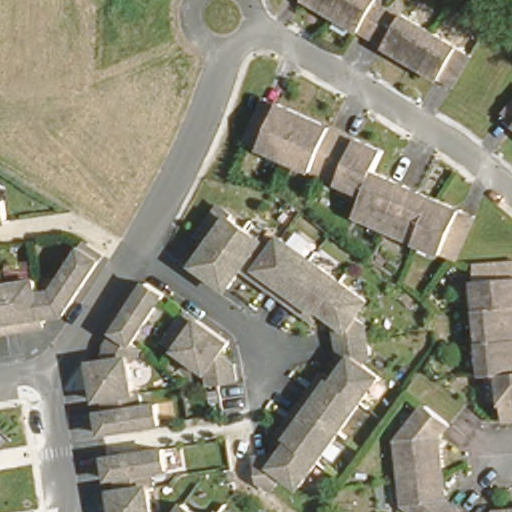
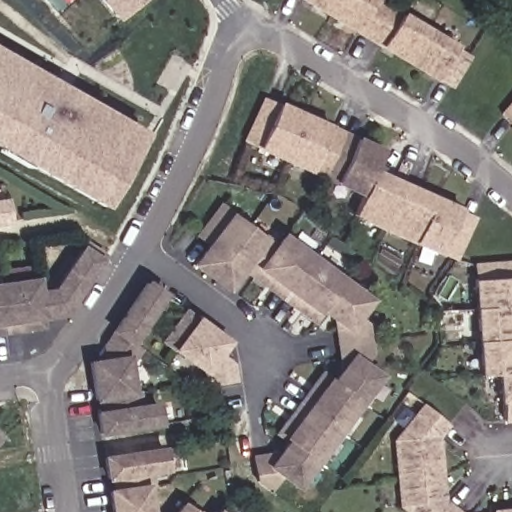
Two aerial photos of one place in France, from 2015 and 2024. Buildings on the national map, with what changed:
new [(111,0),(149,0),(127,19),(111,0)]
unchanged [(329,0),(324,9),(309,0),(329,0)]
unchanged [(384,0),(369,25),(349,13),(344,21),(324,9),(329,0),(384,0)]
unchanged [(402,58),(375,41),(381,31),(369,25),(384,0),(389,0),(425,21),(402,58)]
unchanged [(465,46),(447,76),(433,67),(429,74),(402,58),(425,21),(465,46)]
new [(8,148),(0,143),(0,48),(49,76),(76,91),(134,124),(151,134),(146,142),(115,197),(110,206),(93,196),(36,163),(8,148)]
unchanged [(507,93),(512,87),(512,98),(507,93)]
unchanged [(267,133),(270,126),(249,116),(260,95),(279,104),(284,92),(304,103),(321,111),(316,122),(337,131),(325,158),(309,150),(305,159),(282,148),(264,138),(267,133)]
unchanged [(337,131),(360,144),(364,134),(383,144),(375,161),(362,189),(337,176),(341,166),(325,158),(337,131)]
unchanged [(382,224),(352,209),(359,196),(362,189),(375,161),(406,179),(434,192),(452,202),(448,212),(469,222),(455,251),(437,240),(433,245),(431,248),(410,238),(382,224)]
unchanged [(0,199),(10,198),(14,225),(0,226),(0,199)]
unchanged [(282,480),(273,496),(253,482),(249,455),(276,451),(281,440),(274,435),(321,370),(333,381),(339,373),(332,322),(325,316),(317,328),(244,274),(231,294),(190,267),(203,248),(195,239),(219,206),(232,216),(275,246),(283,234),(375,302),(362,320),(371,324),(375,360),(369,365),(387,378),(299,492),(282,480)]
unchanged [(44,291),(56,290),(84,242),(106,257),(69,319),(44,322),(45,331),(0,336),(0,283),(41,278),(44,291)]
unchanged [(478,338),(478,305),(477,279),(487,279),(486,260),(512,259),(512,336),(478,338)]
unchanged [(141,340),(143,354),(134,356),(143,403),(162,400),(166,429),(101,437),(91,359),(101,358),(101,344),(110,331),(148,281),(171,297),(141,340)]
unchanged [(206,390),(204,373),(161,343),(188,309),(201,319),(236,344),(240,383),(206,390)]
unchanged [(498,372),(480,373),(478,338),(512,336),(512,371),(498,372)]
unchanged [(500,414),(498,372),(512,371),(512,413),(500,414)]
unchanged [(394,467),(391,428),(421,390),(443,408),(432,424),(436,461),(394,467)]
unchanged [(172,475),(151,477),(156,512),(114,512),(106,456),(169,447),(172,475)]
unchanged [(399,497),(394,467),(436,461),(439,489),(448,498),(435,512),(416,512),(399,497)]
unchanged [(465,512),(435,512),(448,498),(465,512)]
unchanged [(485,510),(485,502),(512,500),(512,512),(485,512),(485,510)]
unchanged [(183,503),(197,512),(177,512),(183,503)]
unchanged [(220,510),(223,512),(218,512),(220,510)]
unchanged [(485,510),(485,512),(465,512),(485,510)]

